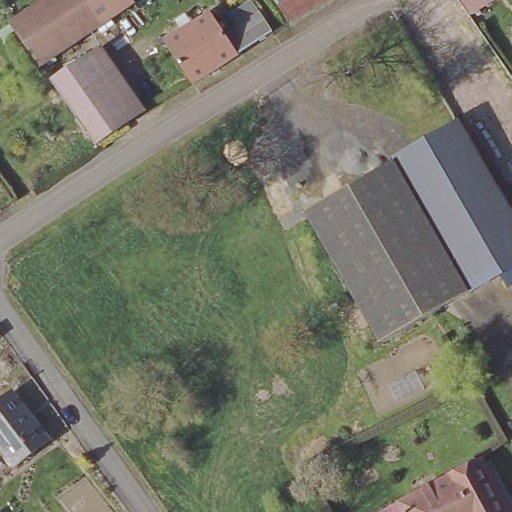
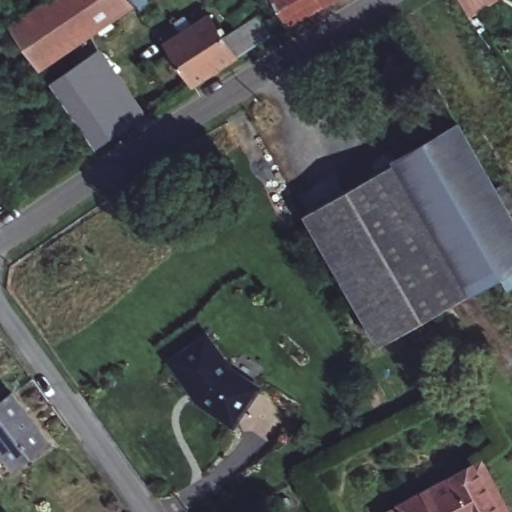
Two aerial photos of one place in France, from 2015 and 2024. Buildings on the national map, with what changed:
unchanged [(135,15),(130,7),(42,69),(13,26),(50,0),(152,0),(153,2),(135,15)]
unchanged [(273,0),(333,0),(287,26),(273,0)]
unchanged [(459,0),(498,0),(472,19),(459,0)]
unchanged [(210,16),(225,38),(240,28),(233,17),(252,5),(259,15),(273,36),(195,86),(167,44),(210,16)]
unchanged [(102,54),(145,117),(97,148),(54,86),(102,54)]
unchanged [(398,164),(447,136),(465,126),(502,190),(508,187),(512,192),(512,274),(505,278),(475,296),(398,164)]
unchanged [(398,164),(475,296),(438,317),(393,239),(382,246),(347,194),(398,164)]
unchanged [(312,214),(347,194),(382,246),(345,267),(312,214)]
unchanged [(390,344),(345,267),(382,246),(393,239),(438,317),(390,344)]
unchanged [(505,278),(512,274),(512,288),(505,278)]
new [(197,403),(167,361),(208,332),(233,367),(262,387),(235,428),(197,403)]
unchanged [(0,401),(12,393),(50,440),(15,468),(0,448),(0,401)]
unchanged [(468,470),(487,460),(512,507),(512,512),(390,512),(468,470)]

